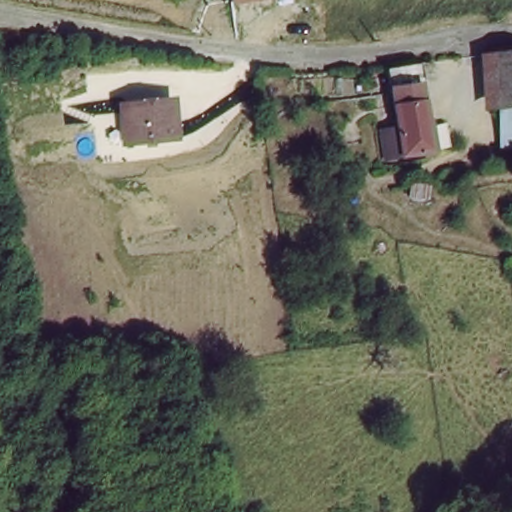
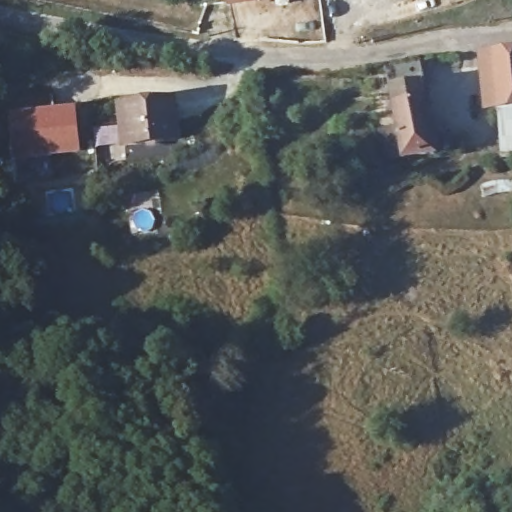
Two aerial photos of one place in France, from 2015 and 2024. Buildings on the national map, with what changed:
unchanged [(509,152),(505,111),(498,112),(495,92),(493,76),(479,77),(478,59),(512,54),(512,151),(509,152)]
unchanged [(383,134),(397,134),(404,133),(390,62),(416,60),(434,157),(402,160),(389,160),(383,134)]
unchanged [(171,95),(176,132),(124,140),(120,101),(171,95)]
new [(76,106),(81,152),(13,160),(7,115),(76,106)]

